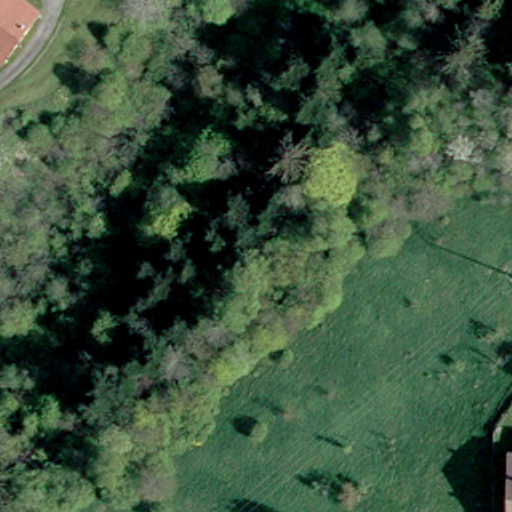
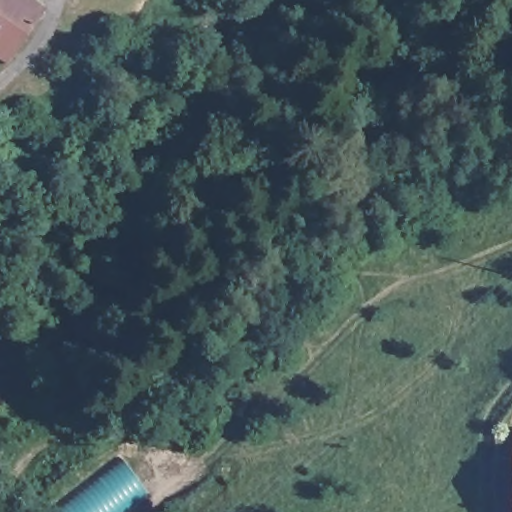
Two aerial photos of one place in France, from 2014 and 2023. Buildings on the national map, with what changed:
unchanged [(12,67),(0,58),(0,0),(28,0),(50,16),(12,67)]
new [(131,512),(47,512),(119,458),(150,497),(131,512)]

